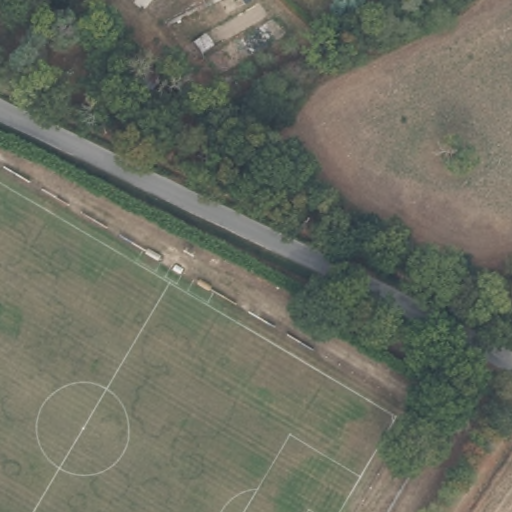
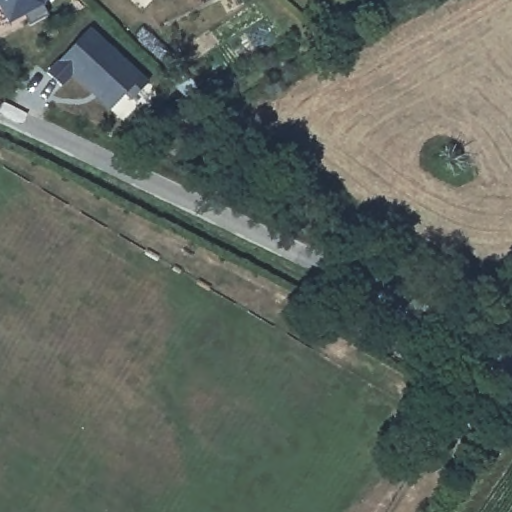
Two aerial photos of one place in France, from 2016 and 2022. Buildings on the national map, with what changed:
new [(8,24),(0,9),(0,0),(47,0),(44,4),(8,24)]
new [(134,99),(127,93),(111,110),(72,76),(62,86),(47,71),(91,25),(149,80),(134,99)]

